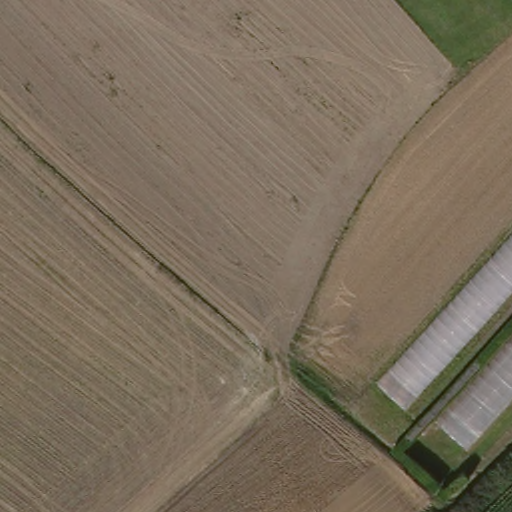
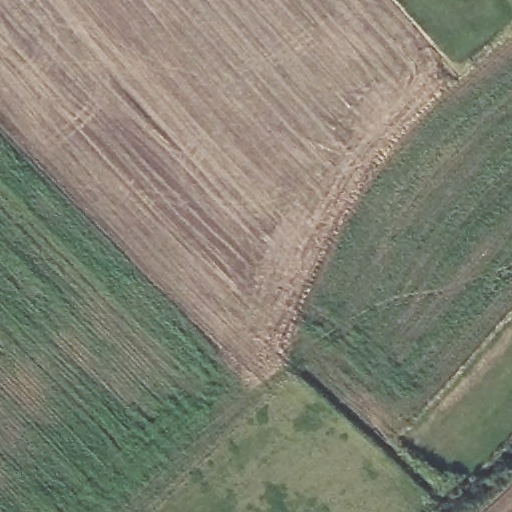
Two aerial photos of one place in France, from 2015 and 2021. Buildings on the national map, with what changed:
demolished [(413,403),(387,380),(512,240),(512,296),(413,403)]
demolished [(512,338),(512,400),(469,449),(435,420),(512,338)]

